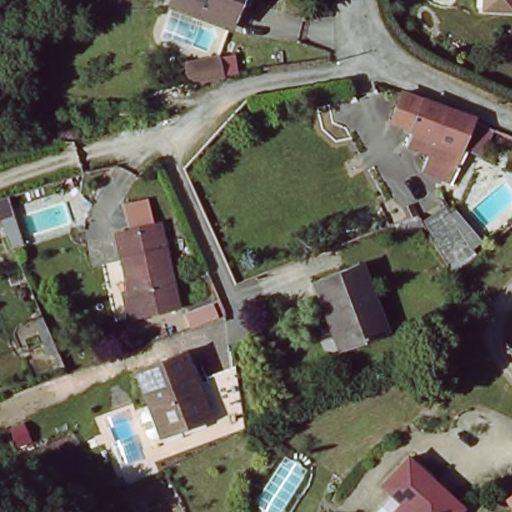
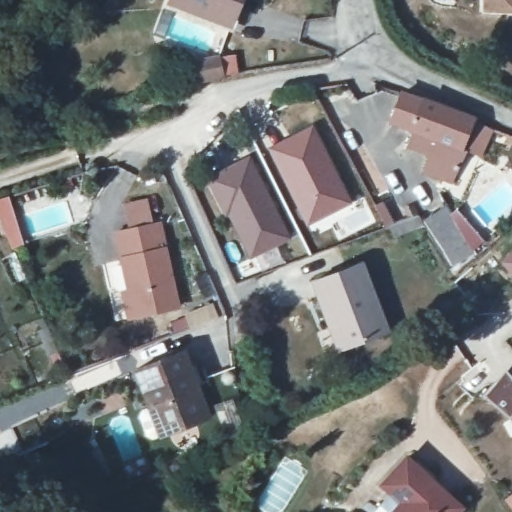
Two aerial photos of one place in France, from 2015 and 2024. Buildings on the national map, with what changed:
unchanged [(228,25),(179,6),(168,2),(169,0),(238,0),(228,25)]
unchanged [(512,10),(499,9),(483,7),(485,0),(512,0),(512,10)]
unchanged [(177,60),(208,50),(214,66),(200,71),(193,75),(182,79),(177,60)]
unchanged [(512,71),(512,99),(503,95),(510,71),(512,71)]
unchanged [(403,140),(408,131),(389,122),(405,90),(471,122),(495,131),(482,159),(458,148),(456,153),(449,165),(403,140)]
new [(313,123),(352,202),(306,226),(266,146),(313,123)]
new [(250,152),(294,237),(248,260),(232,227),(204,177),(250,152)]
unchanged [(124,301),(133,298),(117,234),(129,230),(124,203),(148,199),(153,225),(162,222),(180,306),(131,320),(124,301)]
unchanged [(445,206),(450,212),(455,207),(482,242),(473,250),(476,255),(452,270),(424,225),(394,235),(389,226),(418,216),(421,221),(445,206)]
new [(512,278),(497,260),(512,248),(512,278)]
unchanged [(349,268),(359,264),(374,298),(386,329),(342,348),(313,282),(349,268)]
new [(212,302),(219,317),(174,335),(169,322),(212,302)]
unchanged [(163,438),(138,373),(186,356),(200,388),(193,391),(205,422),(163,438)]
new [(512,377),(512,428),(506,419),(481,395),(505,369),(512,377)]
unchanged [(379,487),(404,459),(465,503),(458,512),(376,512),(390,495),(379,487)]
unchanged [(512,492),(512,502),(507,495),(512,492)]

